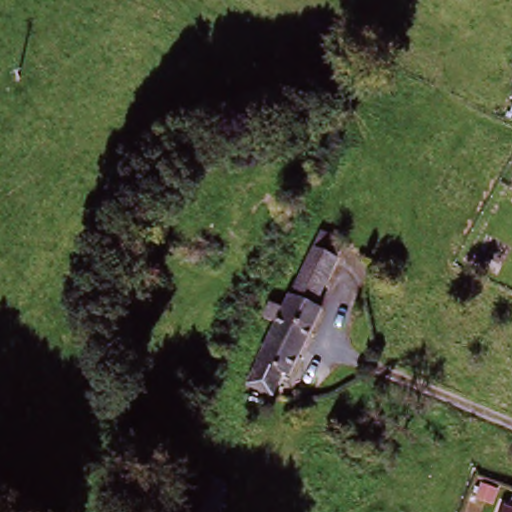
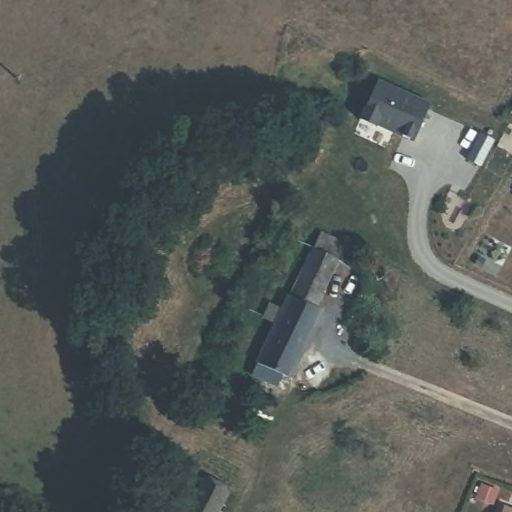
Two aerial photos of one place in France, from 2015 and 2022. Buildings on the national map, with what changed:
new [(377,78),(430,101),(415,137),(377,121),(376,125),(360,117),(377,78)]
unchanged [(512,84),(512,95),(507,92),(512,84)]
unchanged [(343,255),(276,388),(246,374),(314,240),(343,255)]
unchanged [(201,512),(212,490),(235,500),(229,512),(201,512)]
unchanged [(512,503),(512,512),(501,512),(505,500),(512,503)]

